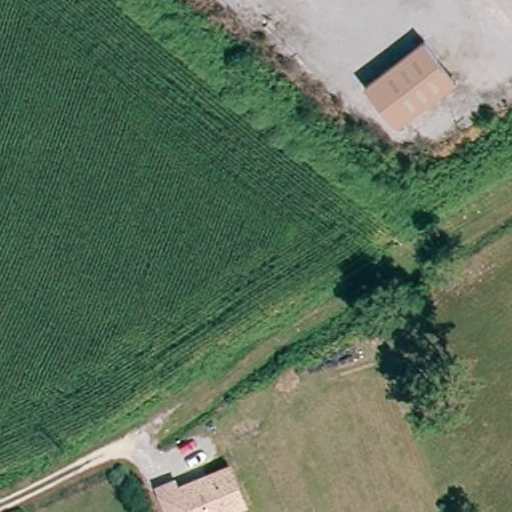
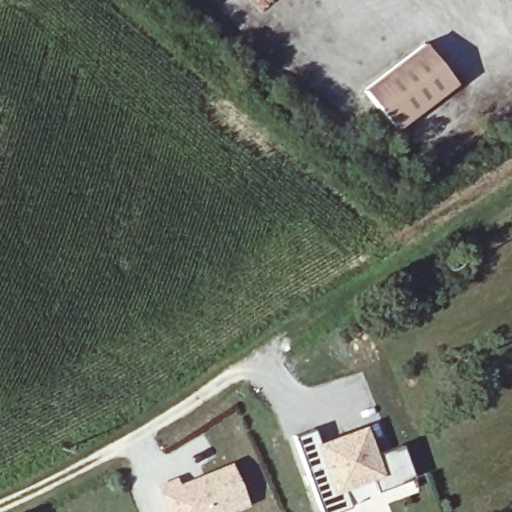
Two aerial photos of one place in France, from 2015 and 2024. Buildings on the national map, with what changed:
unchanged [(425,43),(456,83),(397,129),(365,88),(425,43)]
new [(366,424),(377,456),(402,446),(414,477),(378,490),(374,479),(345,491),(350,506),(333,512),(321,512),(295,435),(312,428),(319,441),(366,424)]
unchanged [(179,480),(231,461),(250,505),(231,512),(168,512),(156,482),(176,473),(179,480)]

